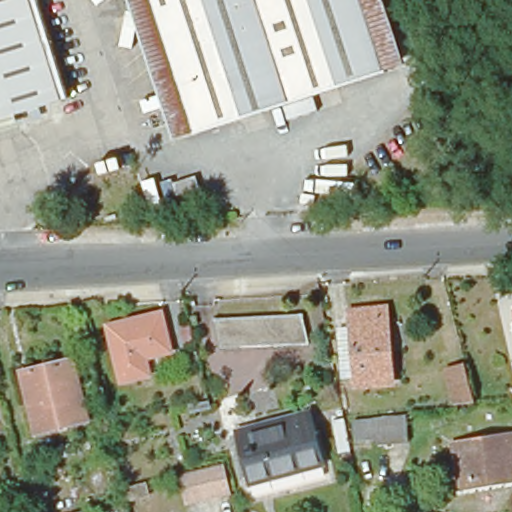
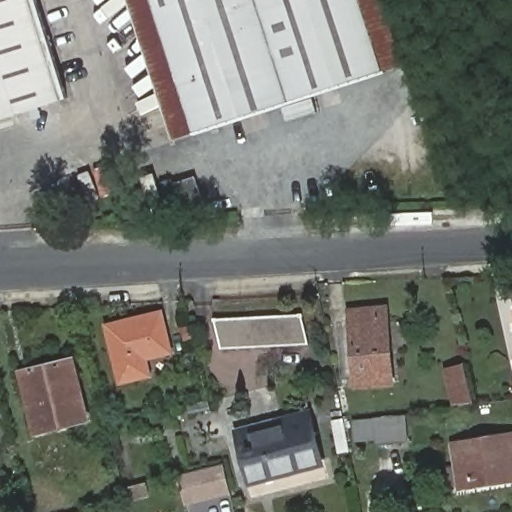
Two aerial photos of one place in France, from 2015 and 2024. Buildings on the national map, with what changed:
unchanged [(0,120),(0,0),(33,0),(65,100),(0,120)]
unchanged [(381,77),(190,139),(145,0),(356,0),(381,77)]
unchanged [(400,71),(381,77),(356,0),(377,0),(400,71)]
unchanged [(183,217),(180,205),(177,193),(196,186),(204,210),(202,211),(183,217)]
unchanged [(336,322),(352,321),(351,308),(386,306),(392,379),(357,382),(357,371),(341,373),(336,322)]
unchanged [(214,318),(300,314),(305,343),(221,347),(214,318)]
unchanged [(105,328),(158,315),(168,352),(144,358),(147,376),(119,383),(105,328)]
unchanged [(89,420),(35,432),(26,393),(21,371),(29,369),(74,360),(89,420)]
unchanged [(447,371),(463,368),(472,405),(455,407),(447,371)]
unchanged [(376,444),(372,418),(395,417),(426,415),(428,440),(397,442),(376,444)]
unchanged [(237,435),(311,417),(323,465),(301,470),(302,472),(272,480),(271,478),(249,483),(237,435)]
unchanged [(358,452),(352,420),(363,418),(370,450),(358,452)]
unchanged [(446,443),(511,435),(512,445),(512,490),(454,498),(446,443)]
unchanged [(224,466),(232,498),(186,509),(179,476),(224,466)]

